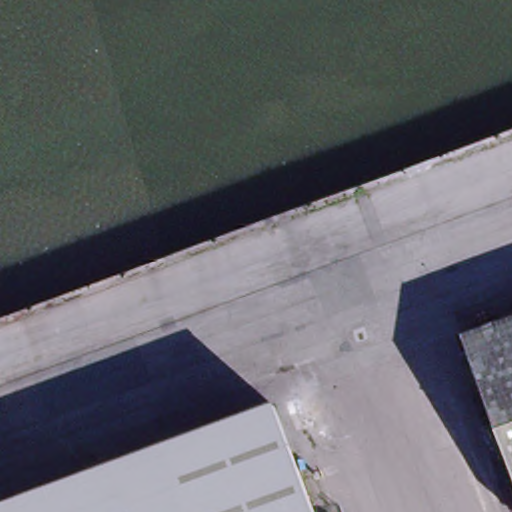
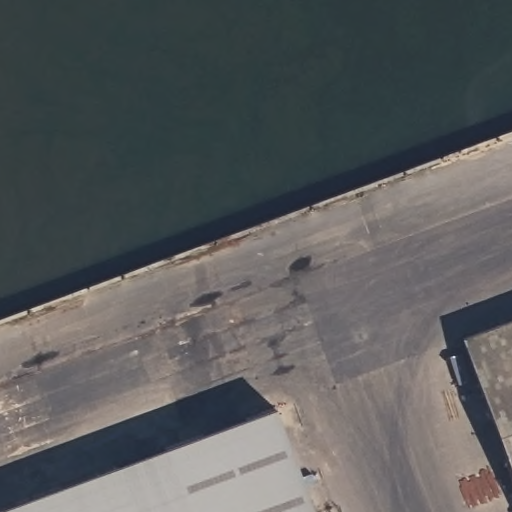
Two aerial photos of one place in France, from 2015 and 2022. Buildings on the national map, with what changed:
unchanged [(460,337),(512,318),(512,477),(460,337)]
unchanged [(305,512),(0,512),(0,508),(267,408),(305,512)]

